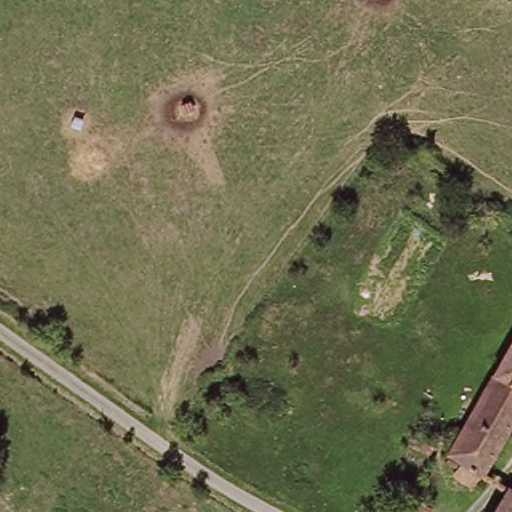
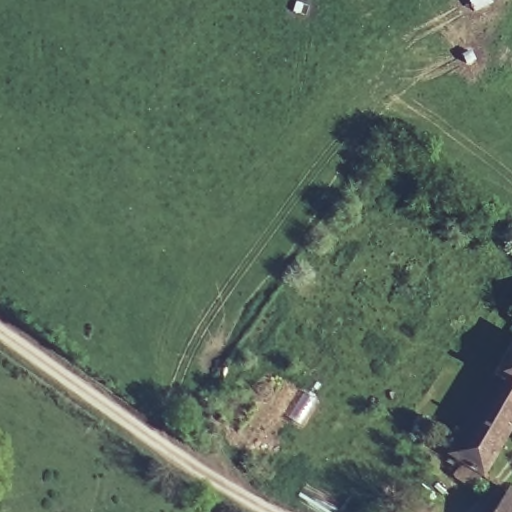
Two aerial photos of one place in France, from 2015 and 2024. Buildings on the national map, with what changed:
unchanged [(442,463),(454,442),(495,374),(512,344),(512,426),(486,471),(482,468),(475,481),(442,463)]
unchanged [(512,494),(512,512),(490,512),(504,489),(512,494)]
unchanged [(432,512),(395,512),(405,496),(432,512)]

